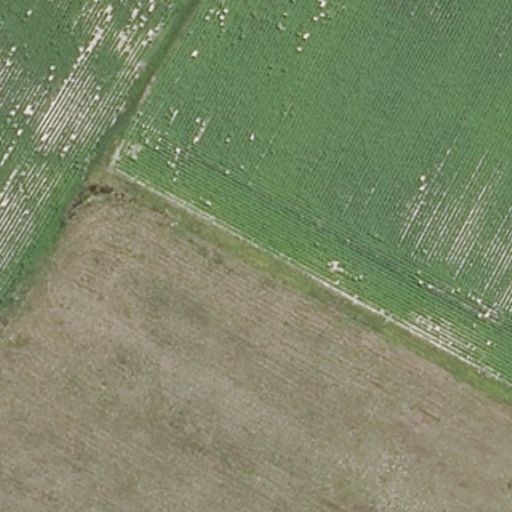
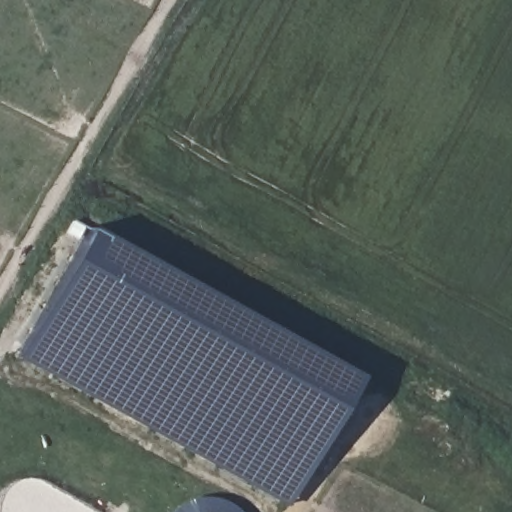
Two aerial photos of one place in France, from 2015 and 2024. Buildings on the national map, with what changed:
new [(286,505),(14,355),(89,226),(358,372),(286,505)]
new [(235,505),(240,512),(171,512),(190,496),(215,496),(235,505)]

